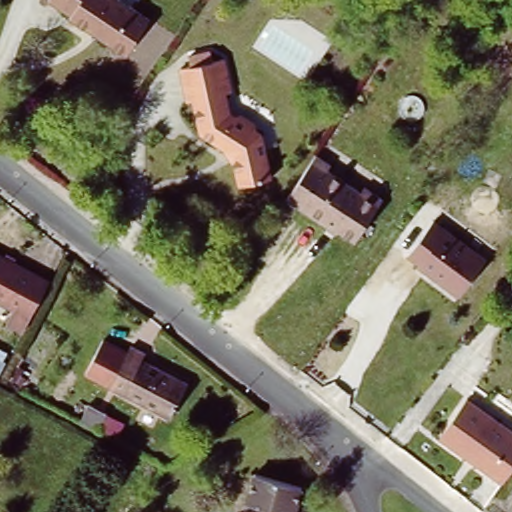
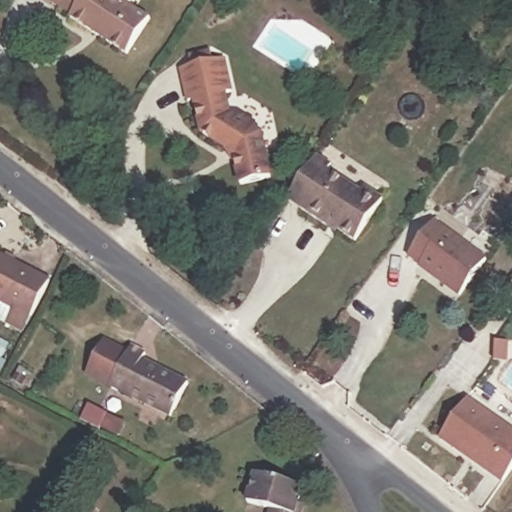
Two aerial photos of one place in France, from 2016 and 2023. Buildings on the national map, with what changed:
unchanged [(126,50),(71,11),(68,16),(55,6),(57,2),(55,0),(135,0),(152,12),(126,50)]
unchanged [(235,109),(243,109),(265,124),(275,168),(244,176),(239,151),(208,129),(200,95),(195,96),(187,62),(195,60),(193,49),(215,45),(217,57),(233,54),(239,90),(232,92),(235,109)]
unchanged [(330,155),(327,162),(361,181),(362,177),(383,190),(360,234),(291,195),(320,147),(330,155)]
unchanged [(487,252),(461,287),(413,251),(438,216),(487,252)]
unchanged [(0,298),(0,253),(55,283),(36,317),(0,298)]
unchanged [(106,390),(125,352),(190,377),(167,422),(106,390)]
unchanged [(446,440),(475,402),(512,430),(512,490),(446,440)]
unchanged [(266,508),(244,502),(252,476),(300,490),(293,512),(265,512),(266,508)]

